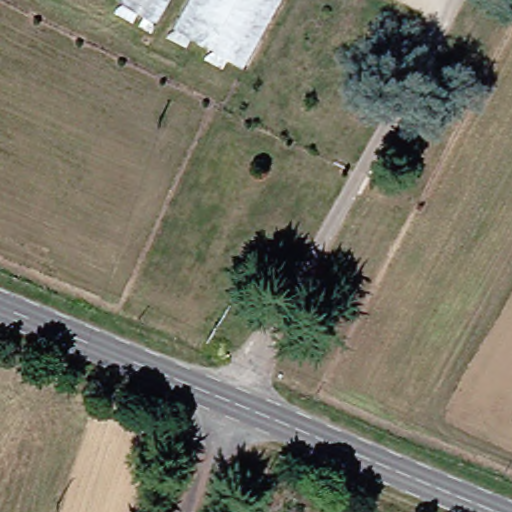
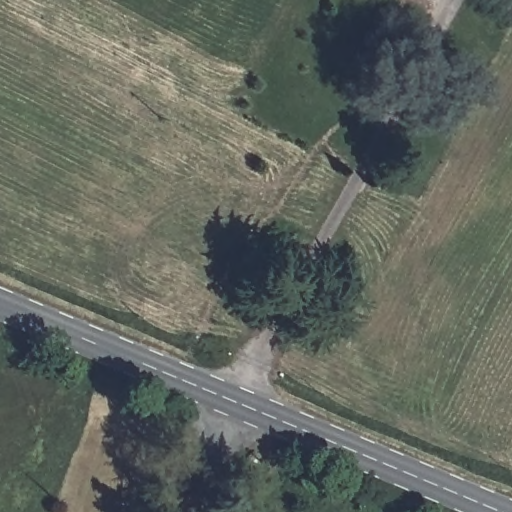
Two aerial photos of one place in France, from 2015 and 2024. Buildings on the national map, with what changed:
demolished [(110,8),(114,0),(154,0),(140,25),(110,8)]
demolished [(186,0),(271,0),(235,64),(171,28),(186,0)]

